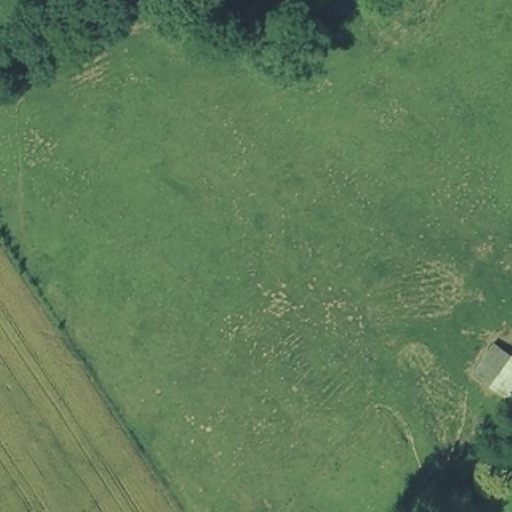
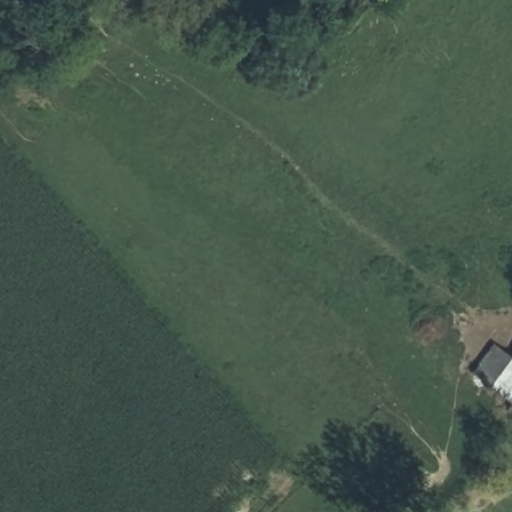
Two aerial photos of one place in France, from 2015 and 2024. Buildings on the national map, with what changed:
unchanged [(475,374),(494,340),(512,355),(512,385),(505,396),(475,374)]

